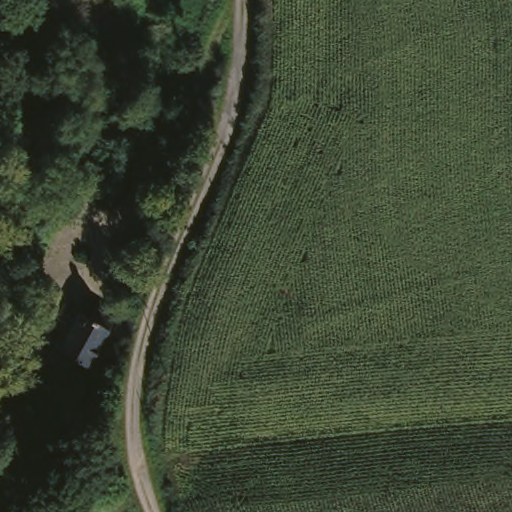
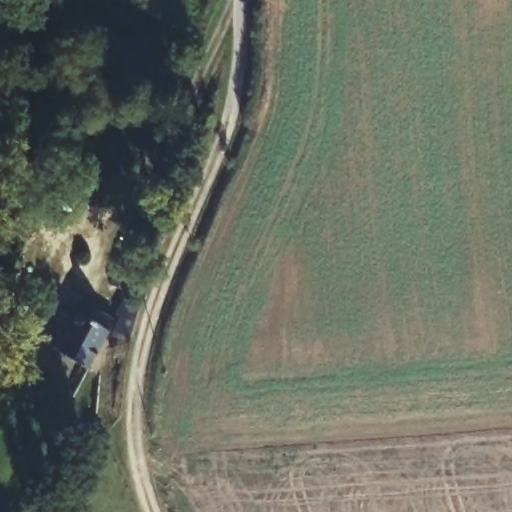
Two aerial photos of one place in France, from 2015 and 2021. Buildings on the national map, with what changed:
unchanged [(119,283),(104,278),(113,249),(129,254),(119,283)]
unchanged [(95,312),(100,304),(120,312),(93,370),(57,353),(78,306),(95,312)]

